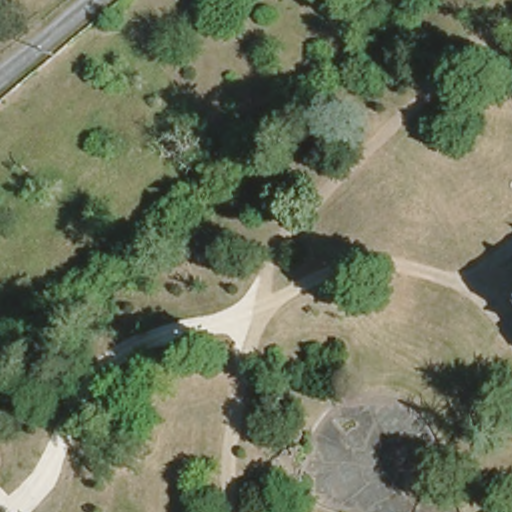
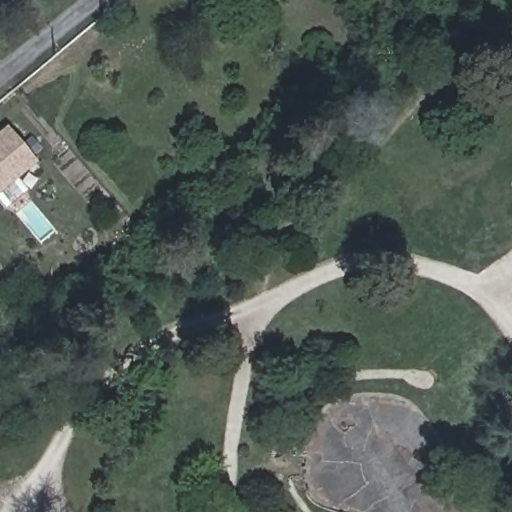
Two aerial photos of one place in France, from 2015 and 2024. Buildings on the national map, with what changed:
new [(38,163),(0,195),(0,137),(10,129),(38,163)]

